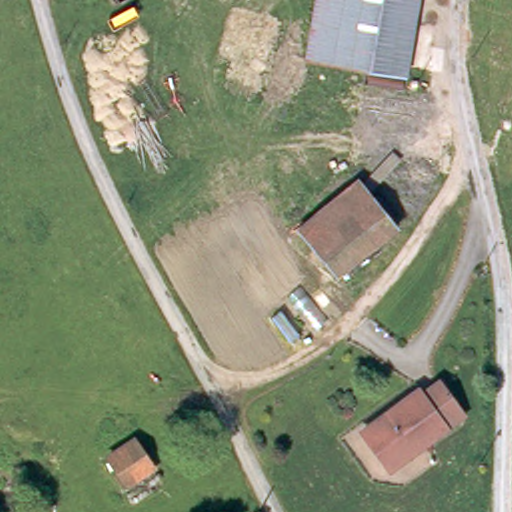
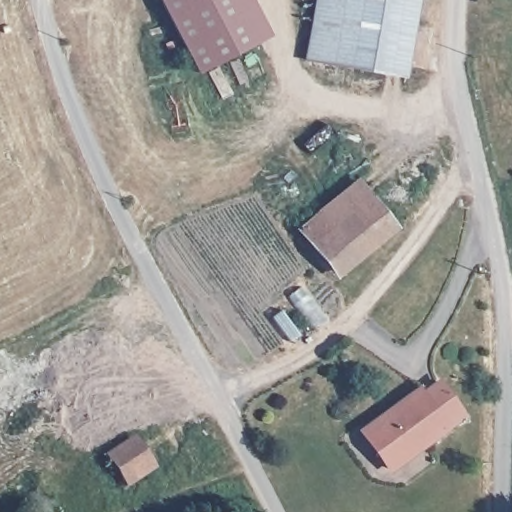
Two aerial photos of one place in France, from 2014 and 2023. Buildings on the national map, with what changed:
new [(198,75),(159,0),(252,0),(271,36),(198,75)]
unchanged [(313,0),(411,0),(399,70),(303,54),(313,0)]
unchanged [(358,177),(399,229),(337,278),(296,229),(358,177)]
unchanged [(368,422),(371,426),(378,420),(374,416),(403,390),(408,395),(425,379),(451,412),(382,471),(352,435),(368,422)]
unchanged [(134,429),(151,459),(124,482),(104,451),(134,429)]

